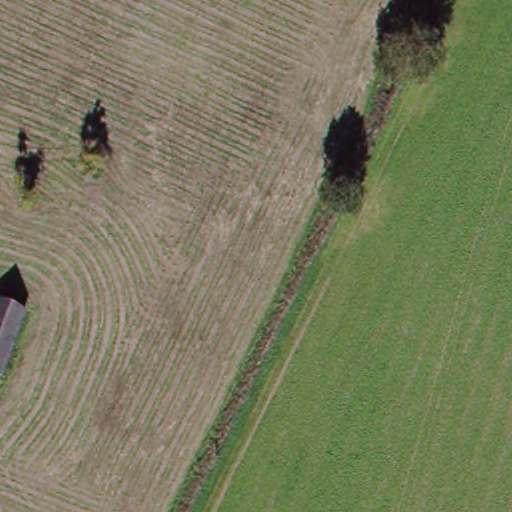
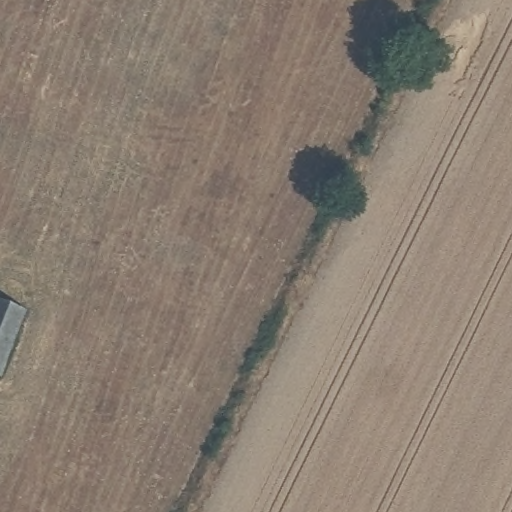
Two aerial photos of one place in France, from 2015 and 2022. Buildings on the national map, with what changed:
unchanged [(22,313),(0,367),(0,304),(22,313)]

